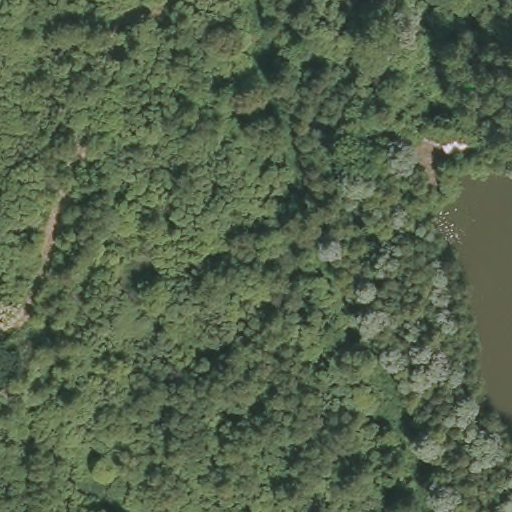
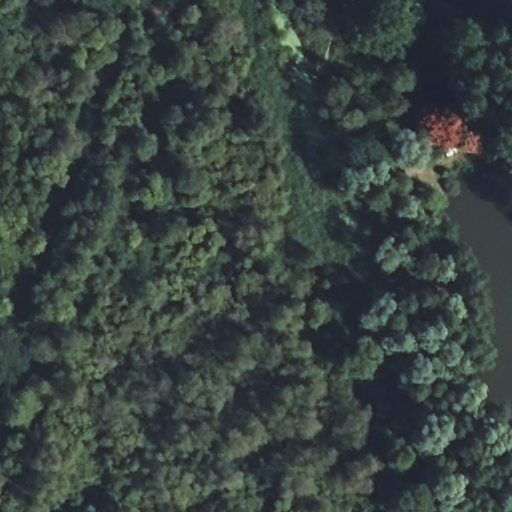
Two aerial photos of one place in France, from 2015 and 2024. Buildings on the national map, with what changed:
unchanged [(443,127),(440,143),(420,139),(422,127),(443,127)]

